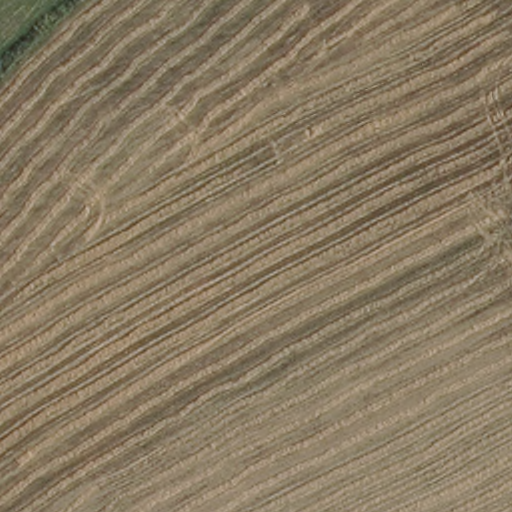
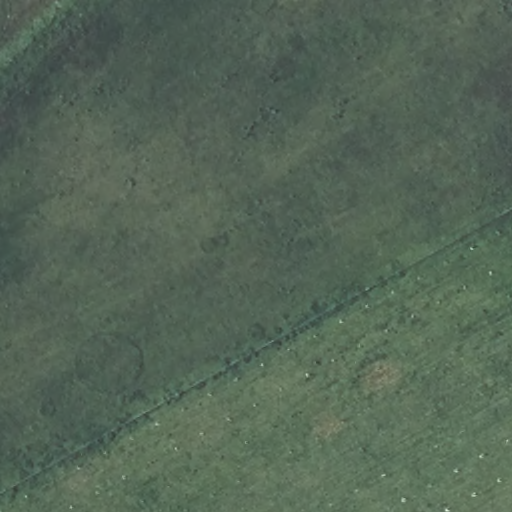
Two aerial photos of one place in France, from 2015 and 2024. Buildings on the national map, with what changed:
[]

